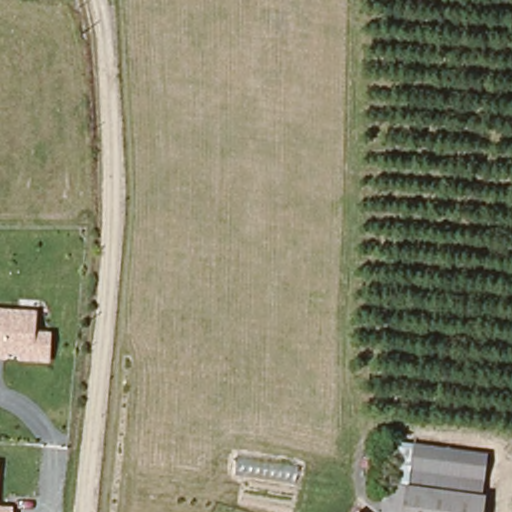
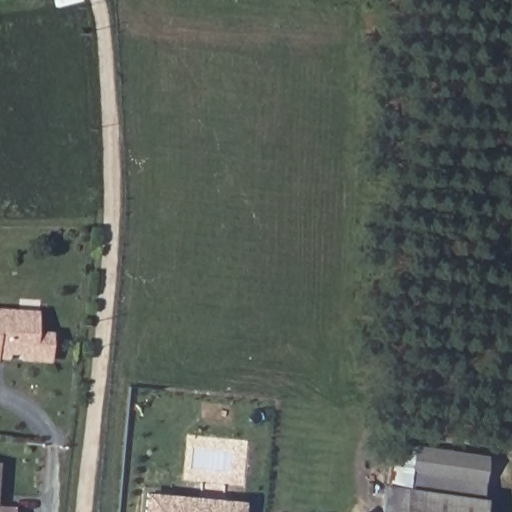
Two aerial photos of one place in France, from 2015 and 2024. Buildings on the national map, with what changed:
unchanged [(39,333),(53,334),(51,363),(0,362),(0,308),(39,311),(39,333)]
unchanged [(392,485),(395,445),(413,448),(406,492),(402,512),(383,512),(386,484),(392,485)]
unchanged [(406,492),(413,448),(487,457),(480,503),(406,492)]
new [(171,493),(170,509),(212,512),(147,512),(150,491),(171,493)]
unchanged [(402,512),(406,492),(480,503),(478,512),(402,512)]
new [(243,499),(242,512),(212,512),(170,509),(171,493),(243,499)]
unchanged [(14,512),(0,512),(0,508),(15,508),(14,512)]
unchanged [(360,512),(357,512),(359,511),(360,512)]

